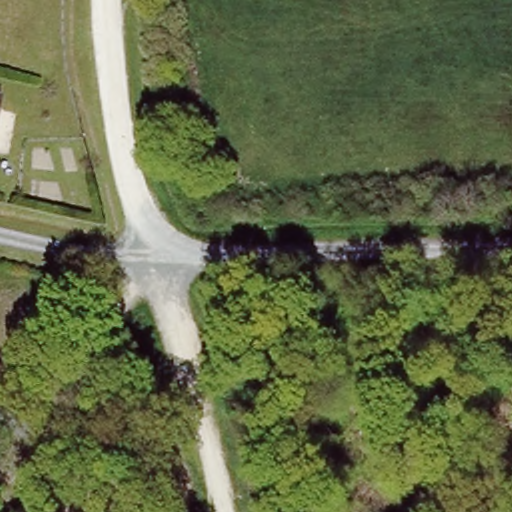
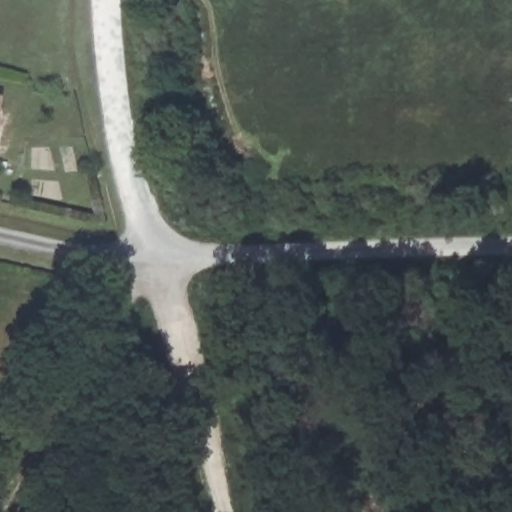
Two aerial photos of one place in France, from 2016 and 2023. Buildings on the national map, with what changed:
unchanged [(0,103),(0,89),(3,90),(0,103)]

